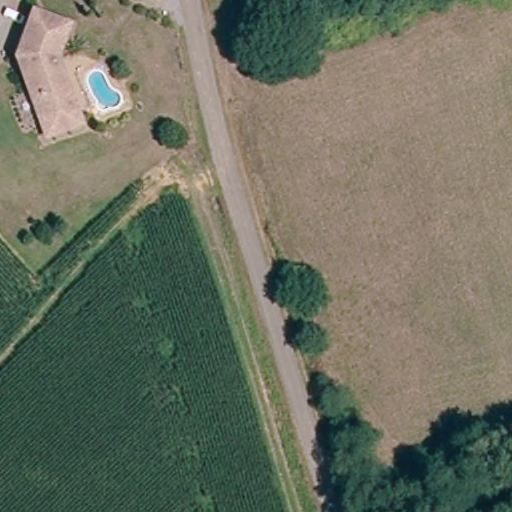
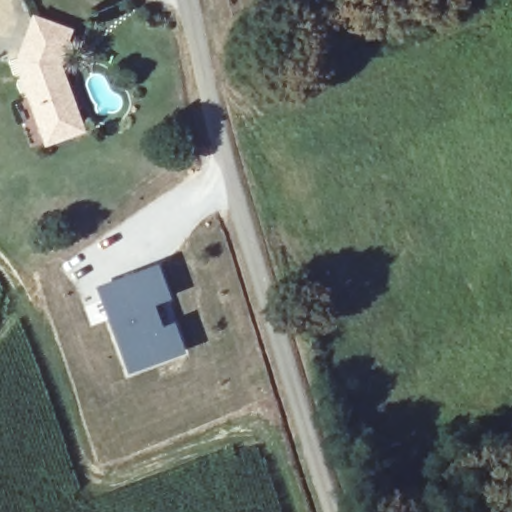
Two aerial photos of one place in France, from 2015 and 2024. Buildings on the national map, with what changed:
unchanged [(84,133),(55,142),(29,62),(46,18),(81,32),(69,64),(91,131),(84,133)]
new [(158,260),(172,300),(158,306),(164,322),(175,318),(187,353),(126,376),(92,286),(158,260)]

